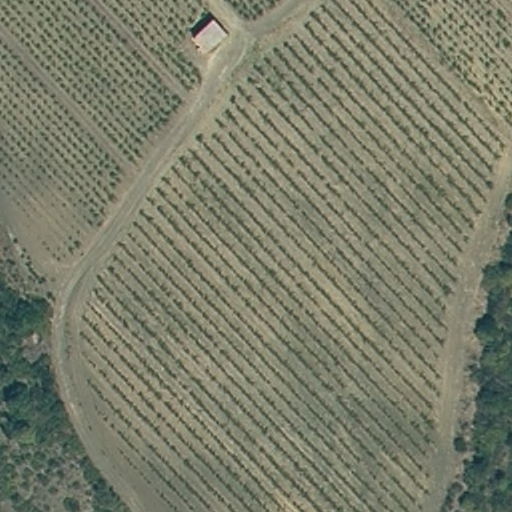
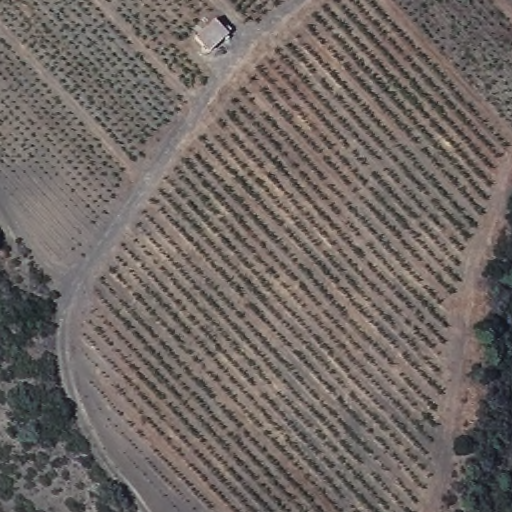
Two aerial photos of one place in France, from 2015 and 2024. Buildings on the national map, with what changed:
unchanged [(230,28),(210,48),(195,33),(217,14),(230,28)]

